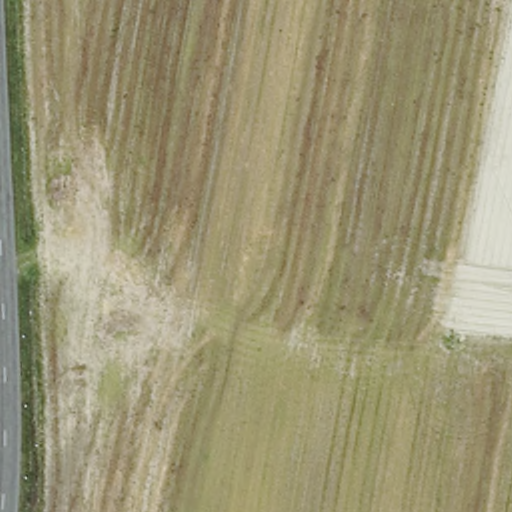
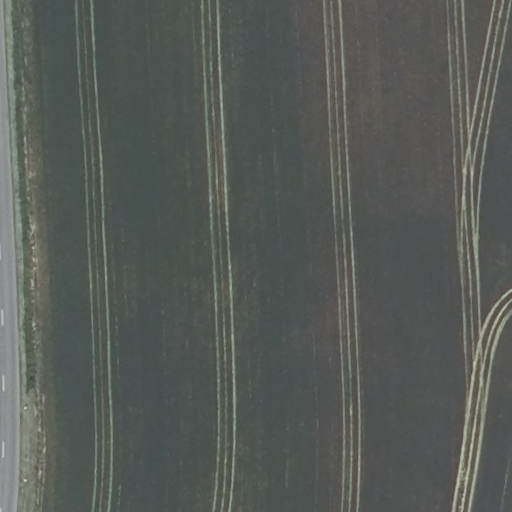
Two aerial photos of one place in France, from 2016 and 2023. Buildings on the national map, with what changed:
[]

